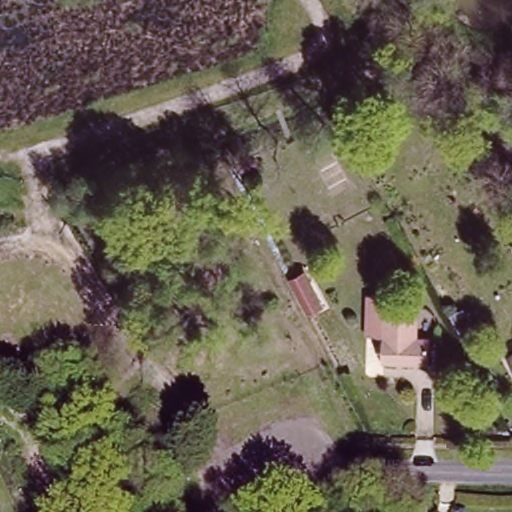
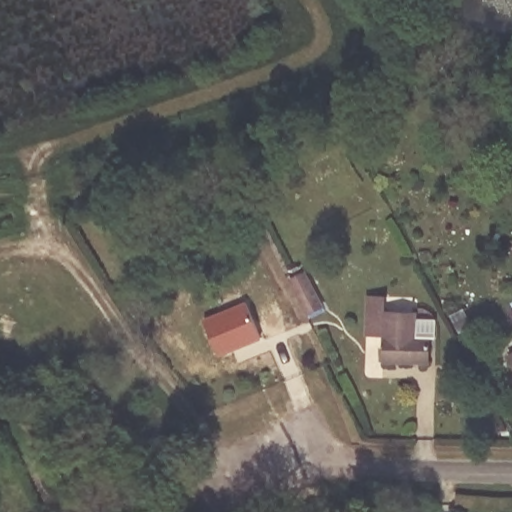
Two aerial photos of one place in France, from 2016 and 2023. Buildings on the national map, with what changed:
new [(307,316),(296,294),(290,282),(303,275),(309,287),(320,309),(307,316)]
new [(246,302),(261,337),(219,355),(204,321),(246,302)]
unchanged [(407,364),(380,363),(382,313),(415,314),(414,340),(428,340),(427,357),(427,365),(407,364)]
unchanged [(512,350),(512,364),(506,353),(512,350)]

